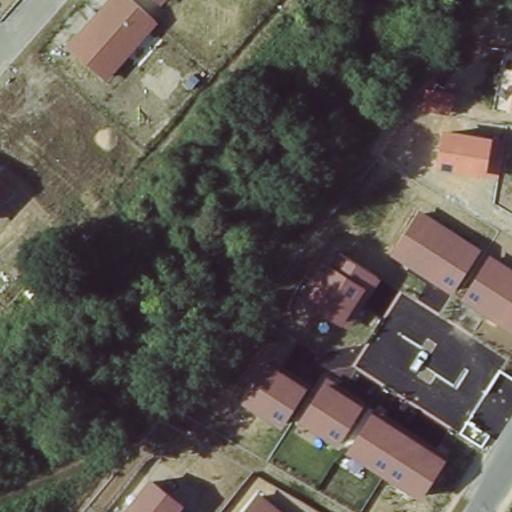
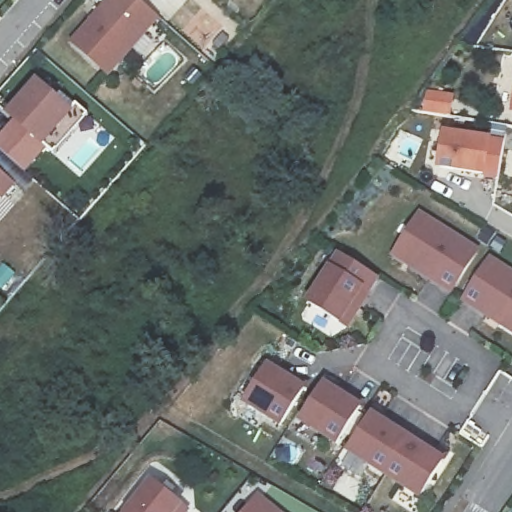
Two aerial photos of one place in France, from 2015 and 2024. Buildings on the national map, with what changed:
unchanged [(109,77),(70,42),(108,0),(138,0),(160,19),(109,77)]
unchanged [(162,0),(165,0),(164,2),(162,0)]
new [(16,124),(9,117),(37,86),(70,115),(59,128),(70,137),(53,157),(44,149),(23,173),(0,153),(0,142),(16,124)]
unchanged [(512,101),(512,113),(510,113),(512,101)]
unchanged [(491,137),(505,140),(500,177),(487,177),(436,171),(444,131),(491,137)]
unchanged [(5,175),(0,180),(0,170),(5,175)]
unchanged [(0,193),(0,190),(2,192),(0,193)]
unchanged [(482,250),(452,297),(392,256),(422,212),(482,250)]
unchanged [(349,332),(307,302),(341,255),(382,282),(349,332)]
unchanged [(489,256),(512,270),(512,334),(460,302),(489,256)]
unchanged [(242,405),(265,363),(306,388),(282,429),(242,405)]
unchanged [(296,423),(323,380),(363,406),(338,447),(296,423)]
unchanged [(422,500),(346,455),(372,413),(445,460),(422,500)]
unchanged [(179,512),(125,512),(149,480),(184,506),(179,512)]
unchanged [(260,493),(282,512),(245,512),(260,493)]

